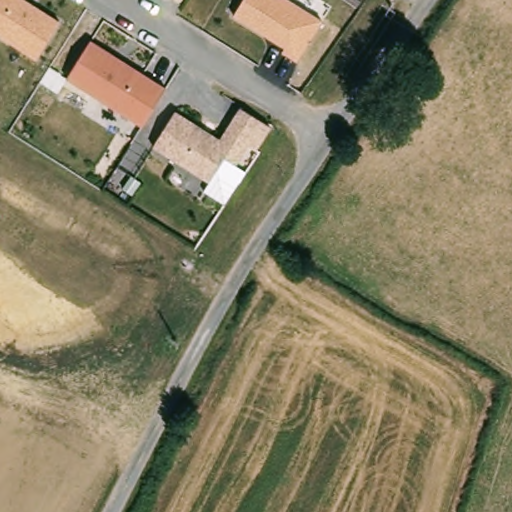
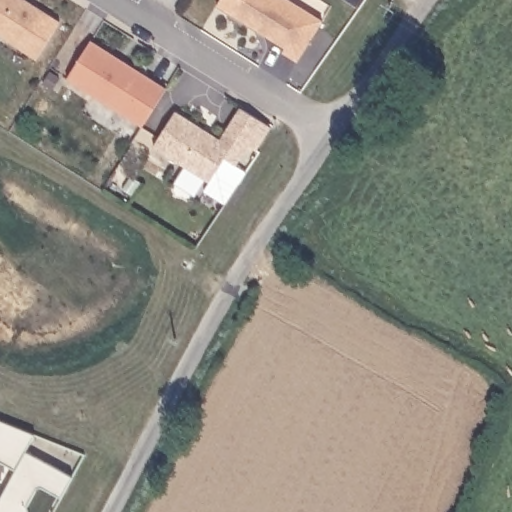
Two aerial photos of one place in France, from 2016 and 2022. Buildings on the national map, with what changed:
unchanged [(33,58),(0,32),(0,0),(36,0),(59,17),(33,58)]
unchanged [(322,22),(297,61),(282,53),(283,48),(233,17),(244,0),(289,0),(322,22)]
unchanged [(168,85),(143,124),(66,75),(91,39),(168,85)]
unchanged [(221,137),(242,103),(273,122),(259,148),(248,142),(237,159),(247,167),(226,199),(204,184),(209,177),(156,143),(179,106),(221,137)]
new [(26,452),(72,477),(61,497),(36,486),(25,508),(26,512),(0,512),(0,503),(15,469),(0,460),(0,421),(34,435),(26,452)]

